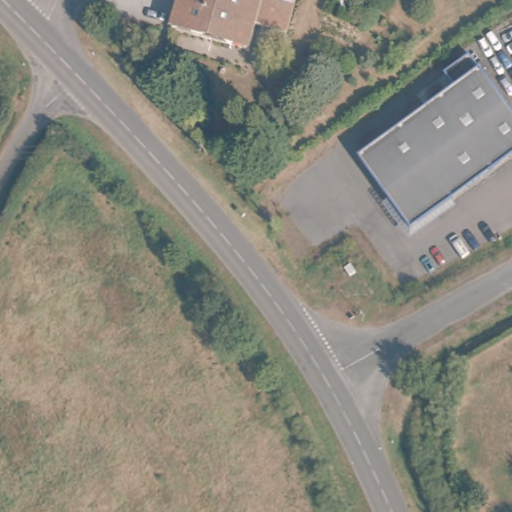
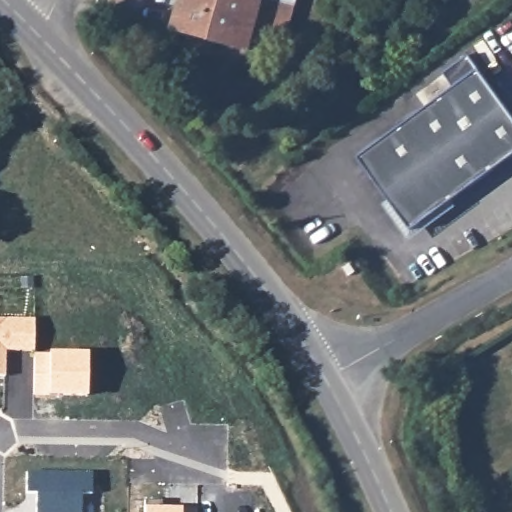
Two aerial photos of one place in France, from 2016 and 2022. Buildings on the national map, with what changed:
unchanged [(253,24),(258,25),(251,50),(175,27),(182,0),(259,0),(253,24)]
unchanged [(288,32),(258,25),(253,24),(259,0),(297,0),(288,32)]
demolished [(251,50),(244,77),(167,56),(175,27),(251,50)]
unchanged [(445,77),(453,71),(471,59),(512,117),(512,161),(490,177),(411,234),(358,160),(455,91),(445,77)]
new [(35,351),(5,351),(6,377),(0,376),(0,318),(34,318),(35,351)]
new [(36,395),(37,355),(89,357),(88,395),(36,395)]
new [(82,494),(82,512),(35,512),(35,492),(26,492),(26,472),(92,472),(92,494),(82,494)]
new [(182,508),(197,508),(197,512),(144,512),(144,507),(182,508)]

